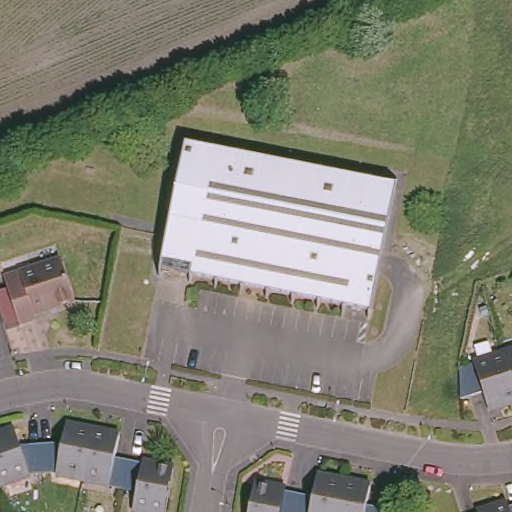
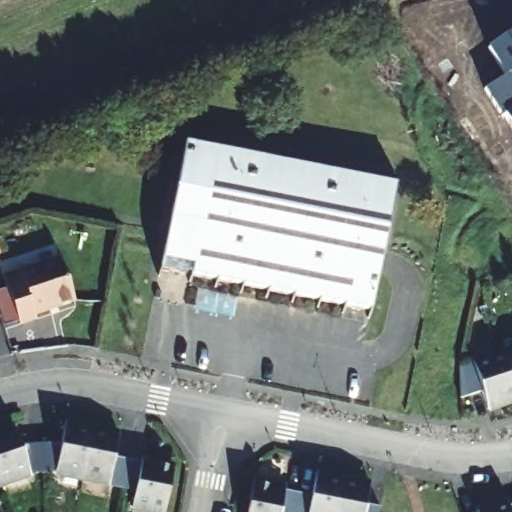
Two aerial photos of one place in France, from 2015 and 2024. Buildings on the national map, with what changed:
new [(501,117),(485,90),(505,76),(487,47),(512,32),(512,127),(505,115),(501,117)]
unchanged [(182,142),(394,183),(370,306),(159,264),(182,142)]
unchanged [(59,253),(74,295),(34,310),(35,314),(19,320),(2,272),(59,253)]
unchanged [(512,381),(506,363),(503,353),(512,351),(512,381)]
unchanged [(484,393),(460,401),(460,368),(503,353),(506,363),(512,381),(512,401),(489,410),(484,393)]
unchanged [(61,435),(64,418),(90,423),(82,467),(57,463),(42,465),(40,437),(61,435)]
unchanged [(19,422),(25,438),(40,437),(42,465),(35,466),(1,477),(0,475),(0,428),(19,422)]
unchanged [(119,428),(115,450),(126,452),(121,477),(110,475),(110,472),(82,467),(90,423),(119,428)]
unchanged [(142,455),(143,450),(172,456),(164,502),(135,497),(137,480),(121,477),(126,452),(142,455)]
unchanged [(312,487),(317,467),(342,472),(339,484),(337,496),(333,512),(291,512),(297,483),(312,487)]
unchanged [(291,512),(283,512),(277,511),(277,512),(244,512),(249,491),(252,472),(284,478),(284,481),(297,483),(291,512)]
unchanged [(337,496),(339,484),(342,472),(369,478),(365,497),(378,500),(376,512),(333,512),(337,496)]
unchanged [(1,477),(0,478),(0,475),(1,477)]
unchanged [(507,498),(509,503),(512,512),(470,512),(507,498)]
unchanged [(512,502),(512,512),(509,503),(512,502)]

